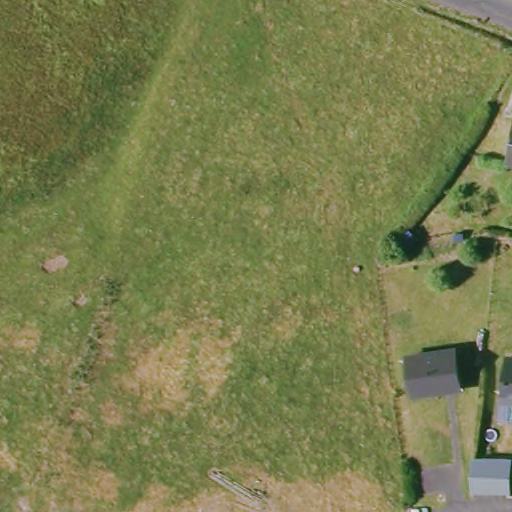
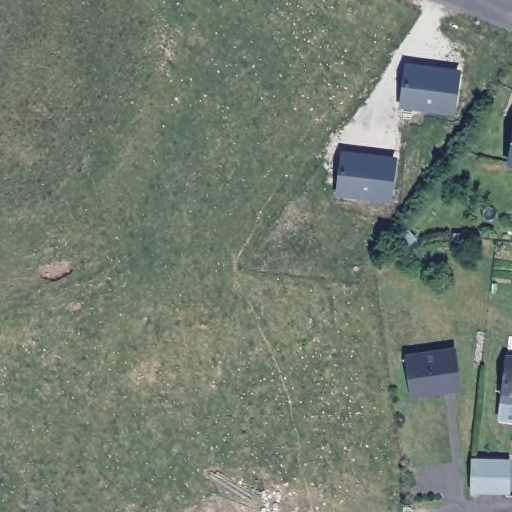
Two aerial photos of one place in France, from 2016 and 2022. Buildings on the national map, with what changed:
new [(461,70),(455,116),(399,107),(389,78),(402,63),(461,70)]
unchanged [(512,122),(512,169),(501,167),(511,122),(512,122)]
new [(393,202),(337,196),(341,151),(397,157),(393,202)]
unchanged [(404,355),(456,347),(462,390),(411,397),(404,355)]
unchanged [(495,417),(498,398),(504,356),(512,357),(512,420),(495,417)]
unchanged [(466,497),(467,465),(505,467),(503,500),(466,497)]

